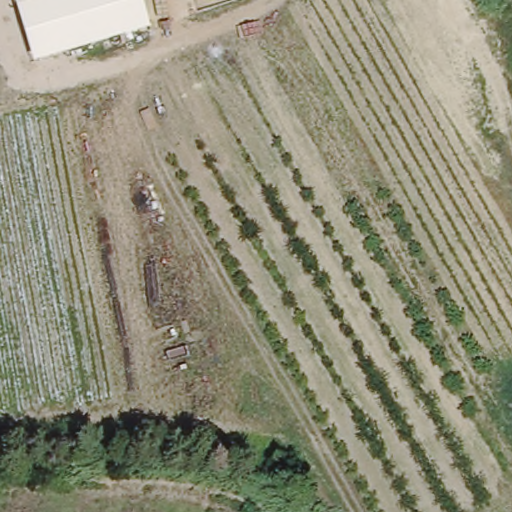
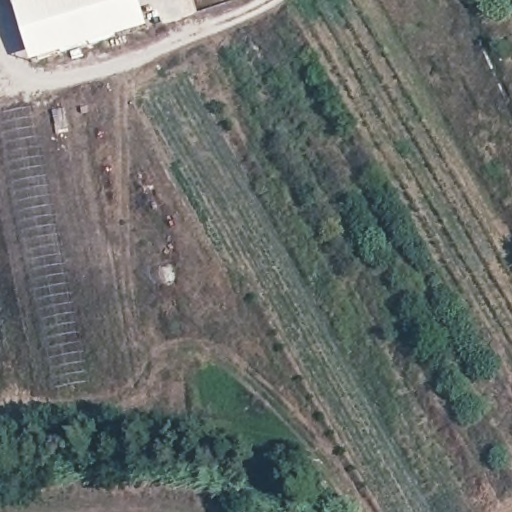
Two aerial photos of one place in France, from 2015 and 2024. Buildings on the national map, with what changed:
unchanged [(146,0),(154,26),(34,60),(16,0),(146,0)]

